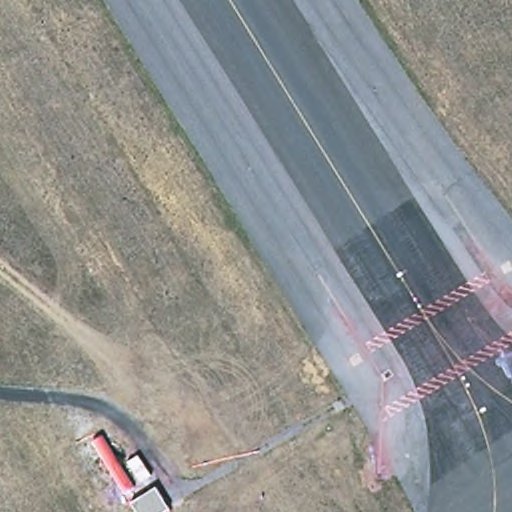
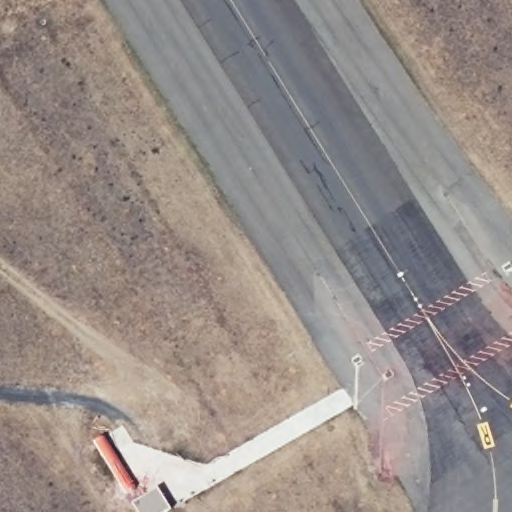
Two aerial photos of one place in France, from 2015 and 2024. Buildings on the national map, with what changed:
unchanged [(88,440),(103,430),(137,484),(122,495),(88,440)]
unchanged [(128,498),(155,483),(175,510),(169,512),(137,512),(128,498)]

